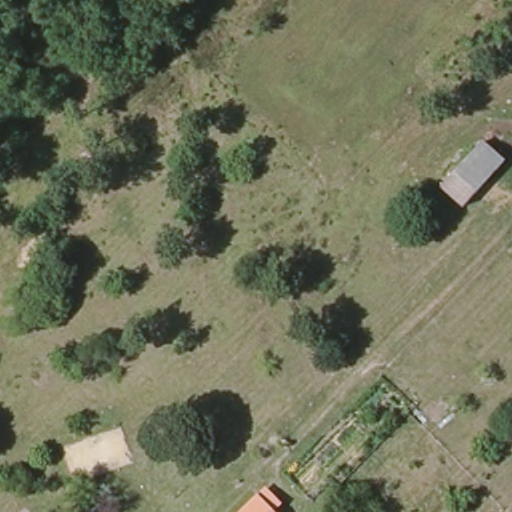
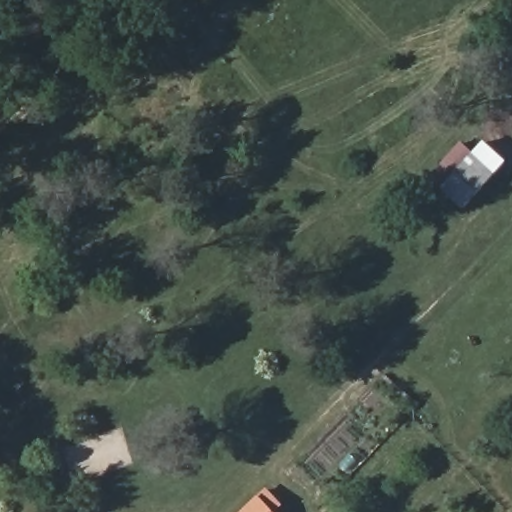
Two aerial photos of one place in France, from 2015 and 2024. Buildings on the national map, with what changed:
unchanged [(464,207),(443,185),(485,139),(510,164),(464,207)]
unchanged [(288,512),(245,512),(272,490),(288,512)]
unchanged [(166,512),(148,512),(157,503),(166,512)]

